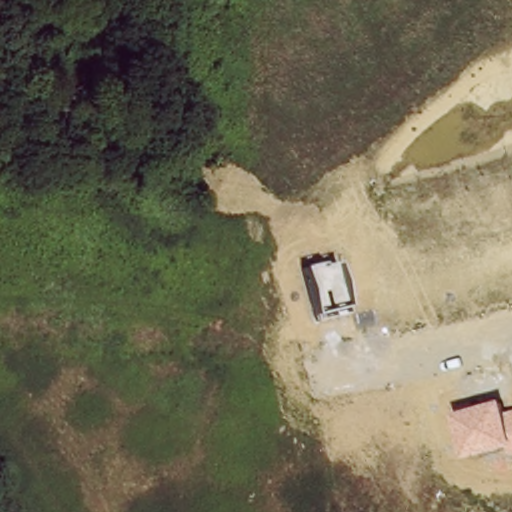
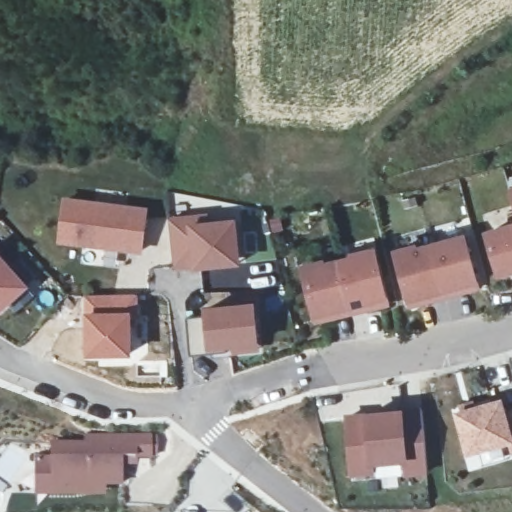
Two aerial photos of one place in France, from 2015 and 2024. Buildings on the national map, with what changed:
new [(510,191),(512,191),(512,197),(510,191)]
new [(150,209),(143,255),(57,245),(63,196),(150,209)]
new [(208,214),(210,222),(235,220),(241,265),(195,269),(176,270),(170,217),(208,214)]
new [(512,226),(512,271),(499,275),(487,234),(512,226)]
unchanged [(416,247),(417,250),(465,237),(478,288),(411,305),(397,252),(416,247)]
new [(355,260),(355,256),(375,251),(387,303),(350,311),(339,264),(355,260)]
new [(0,316),(0,315),(0,252),(32,287),(0,316)]
unchanged [(339,264),(350,311),(314,318),(305,271),(339,264)]
new [(140,295),(142,341),(134,340),(134,356),(88,357),(87,315),(86,297),(140,295)]
new [(205,317),(205,308),(257,302),(261,350),(235,353),(192,356),(189,319),(205,317)]
unchanged [(505,398),(509,412),(512,411),(512,455),(510,455),(507,446),(468,457),(455,412),(505,398)]
new [(364,413),(403,409),(423,409),(430,475),(405,477),(404,463),(374,465),(377,475),(351,476),(345,413),(364,413)]
new [(50,457),(50,443),(85,442),(85,435),(152,433),(153,457),(139,458),(139,465),(124,466),(124,485),(107,485),(106,496),(36,496),(37,458),(50,457)]

